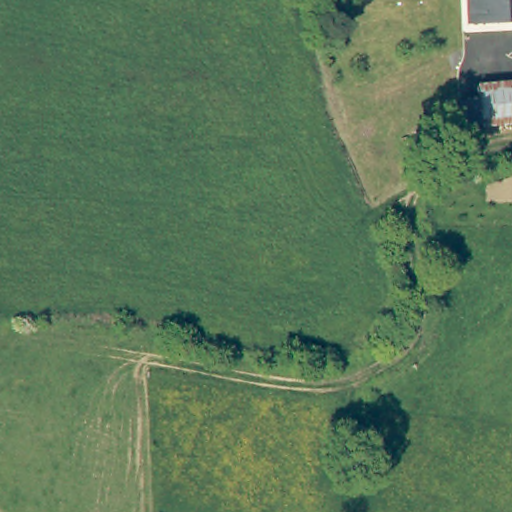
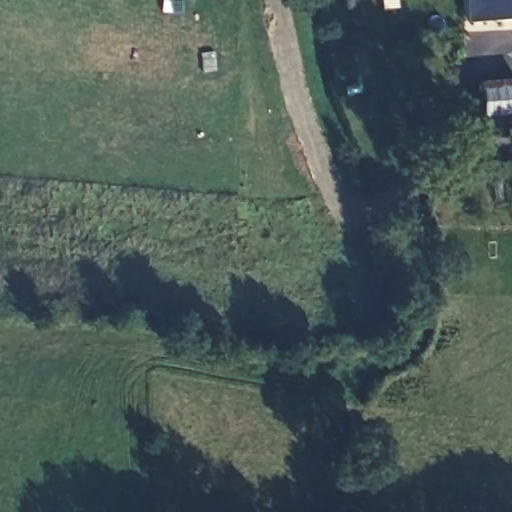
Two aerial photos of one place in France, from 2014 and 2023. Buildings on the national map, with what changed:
unchanged [(462,0),(495,0),(496,23),(463,24),(462,0)]
unchanged [(512,0),(512,22),(496,23),(495,0),(512,0)]
unchanged [(480,85),(512,82),(512,123),(483,125),(480,85)]

